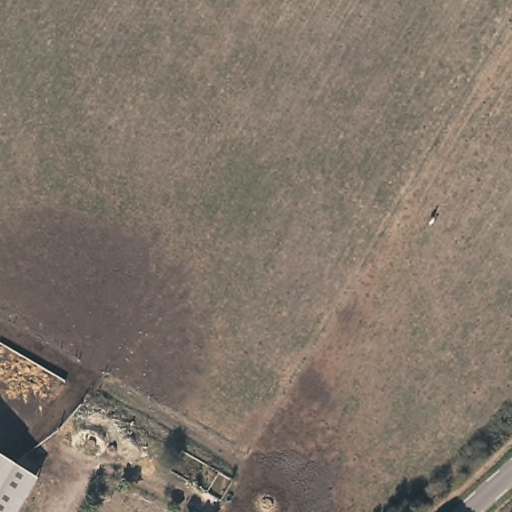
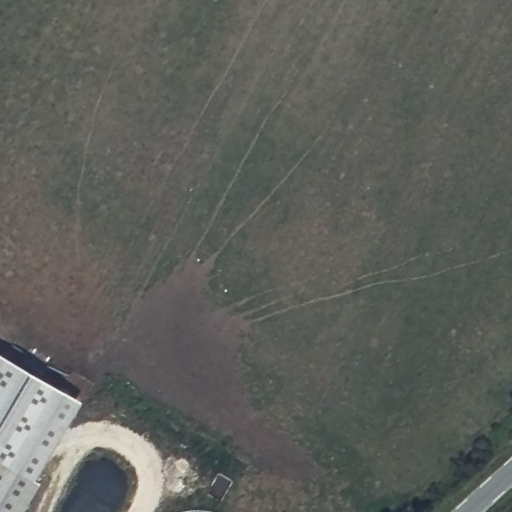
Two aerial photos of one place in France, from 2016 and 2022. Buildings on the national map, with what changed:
new [(81,400),(38,480),(0,458),(0,352),(81,400)]
unchanged [(19,512),(0,512),(0,458),(38,480),(19,512)]

